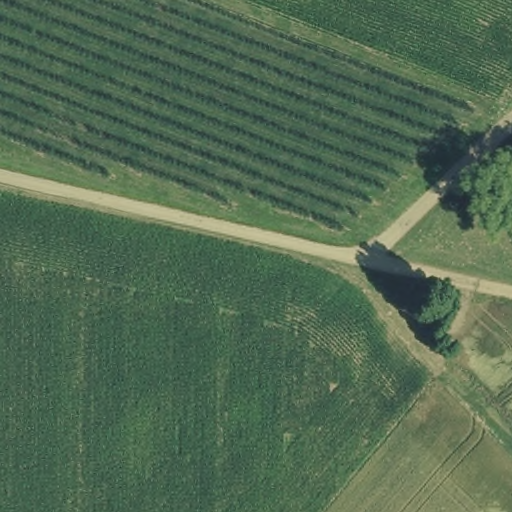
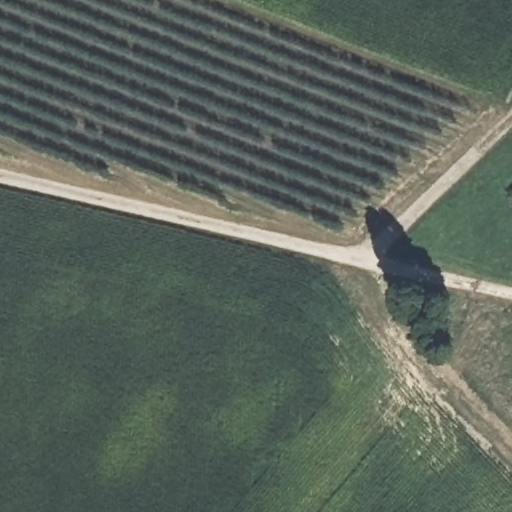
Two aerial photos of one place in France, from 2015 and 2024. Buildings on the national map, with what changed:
unchanged [(446,325),(424,323),(426,304),(449,307),(446,325)]

